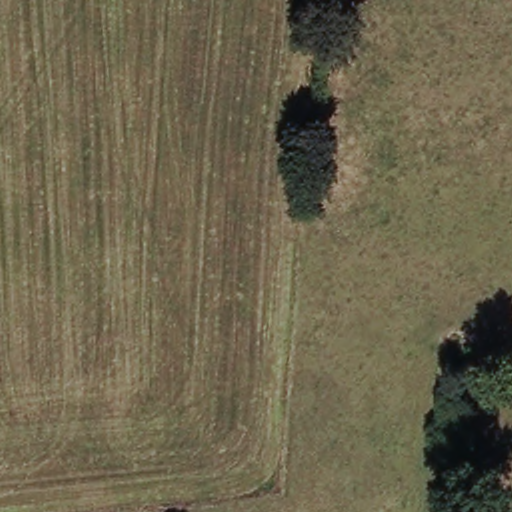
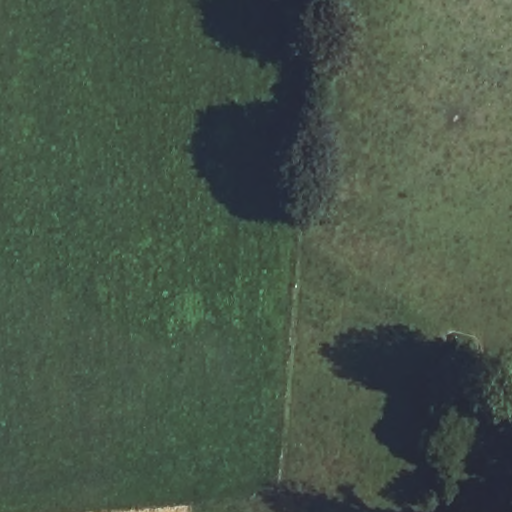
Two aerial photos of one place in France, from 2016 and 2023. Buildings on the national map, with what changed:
[]

